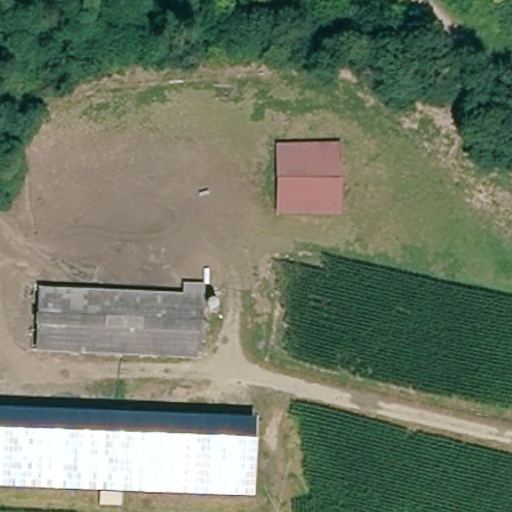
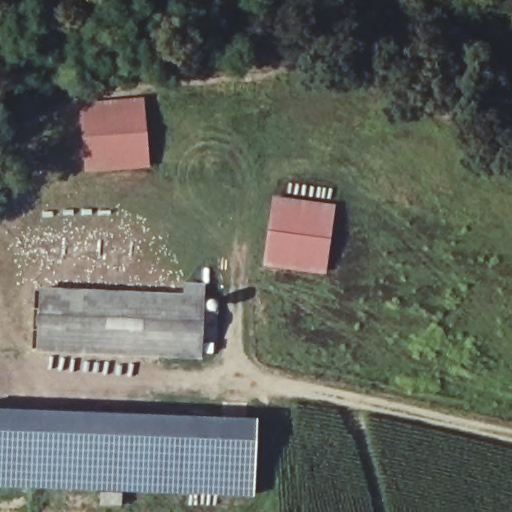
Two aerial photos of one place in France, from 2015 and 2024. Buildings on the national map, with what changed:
unchanged [(87,99),(152,100),(149,170),(86,169),(87,99)]
demolished [(279,143),(344,144),(342,214),(278,213),(279,143)]
new [(272,195),(336,204),(325,275),(261,265),(272,195)]
unchanged [(39,354),(39,295),(204,295),(204,355),(39,354)]
unchanged [(253,496),(122,491),(121,506),(102,505),(102,491),(0,486),(0,408),(257,419),(253,496)]

